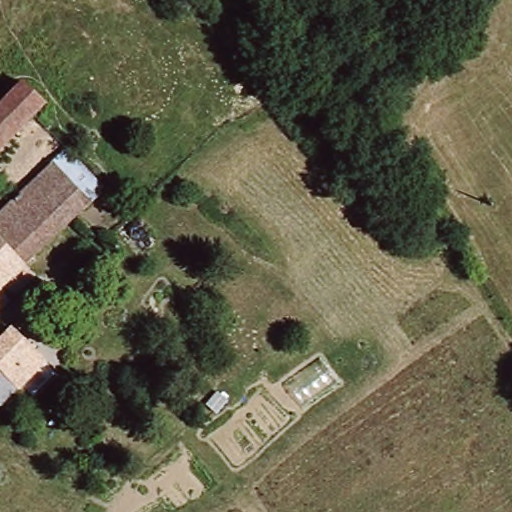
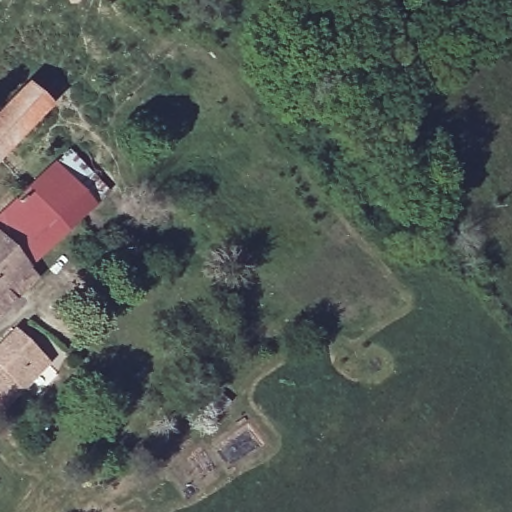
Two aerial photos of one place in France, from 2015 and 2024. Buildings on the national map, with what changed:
unchanged [(48,104),(0,155),(0,105),(24,80),(48,104)]
unchanged [(0,232),(3,229),(0,226),(0,222),(60,167),(97,207),(0,300),(0,232)]
unchanged [(0,393),(0,346),(11,336),(42,368),(16,392),(9,386),(0,393)]

